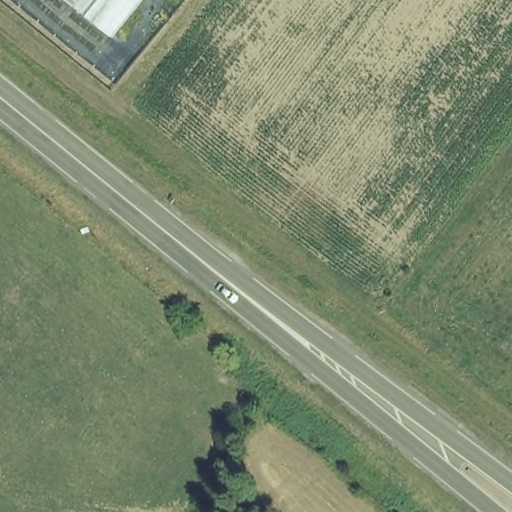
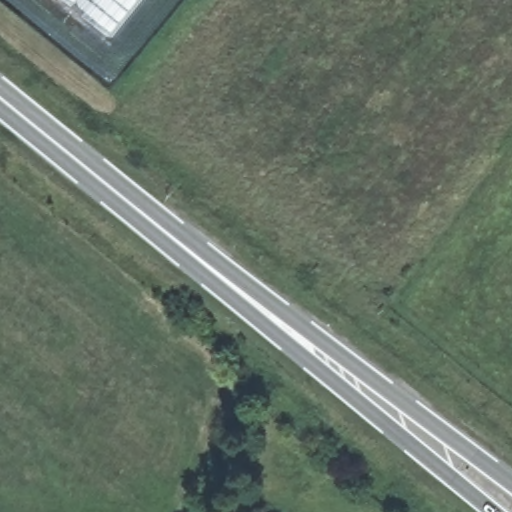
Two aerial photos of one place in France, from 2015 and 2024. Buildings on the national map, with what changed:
unchanged [(65,0),(141,0),(111,37),(65,0)]

